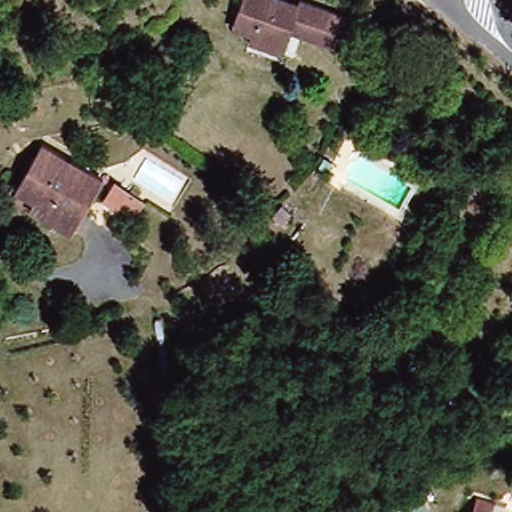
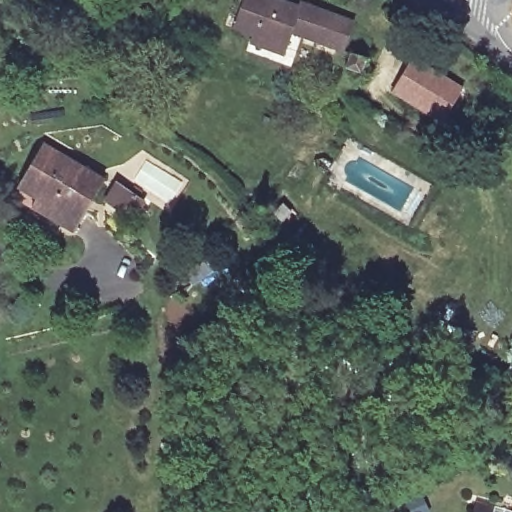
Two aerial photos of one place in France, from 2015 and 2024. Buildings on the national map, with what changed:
unchanged [(232,22),(238,0),(317,0),(353,11),(345,43),(287,26),(279,49),(247,38),(248,30),(232,22)]
unchanged [(361,69),(345,62),(352,47),(367,54),(361,69)]
new [(416,56),(440,71),(420,105),(396,90),(416,56)]
new [(440,71),(467,86),(446,120),(420,105),(440,71)]
unchanged [(43,144),(103,174),(75,226),(33,205),(38,196),(18,185),(43,144)]
unchanged [(477,506),(496,512),(475,512),(477,506)]

